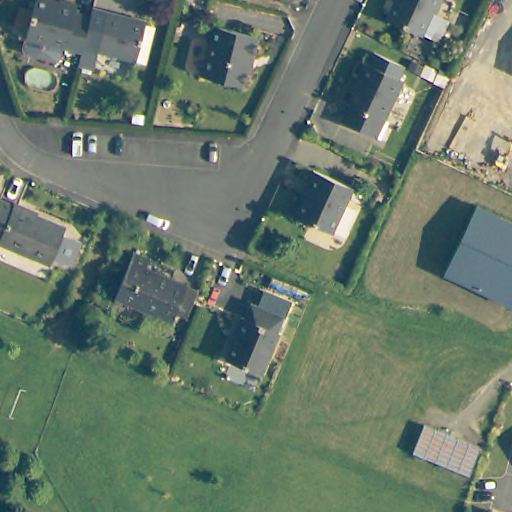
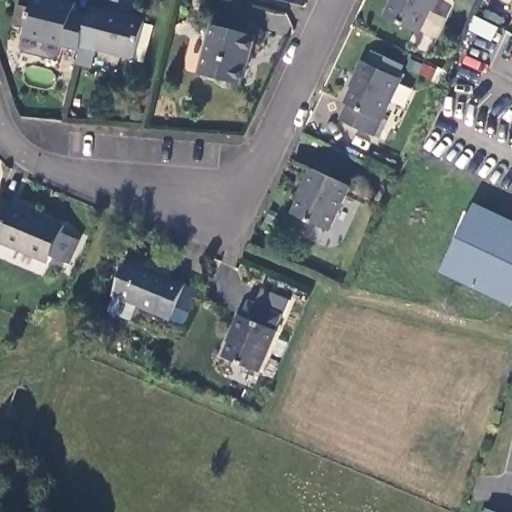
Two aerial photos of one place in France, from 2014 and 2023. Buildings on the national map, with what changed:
unchanged [(47,58),(18,51),(15,45),(18,35),(26,0),(44,0),(46,0),(47,0),(65,0),(64,6),(85,11),(82,25),(76,49),(55,44),(52,55),(47,58)]
unchanged [(439,0),(431,18),(428,16),(419,35),(380,18),(387,0),(438,0),(439,0)]
unchanged [(85,11),(86,7),(138,18),(130,58),(93,50),(88,67),(72,63),(76,49),(82,25),(85,11)]
unchanged [(246,55),(241,54),(232,83),(193,75),(205,26),(252,35),(246,55)]
unchanged [(367,141),(335,127),(342,113),(338,110),(348,86),(344,84),(354,64),(358,65),(363,53),(394,65),(389,78),(395,80),(367,141)]
unchanged [(326,229),(292,215),(302,189),(297,187),(306,166),(346,183),(326,229)]
unchanged [(20,202),(17,208),(50,222),(47,229),(66,236),(54,265),(0,243),(0,197),(1,194),(20,202)]
unchanged [(455,276),(487,207),(512,219),(512,302),(455,276)]
unchanged [(164,319),(109,298),(128,252),(145,258),(141,269),(179,284),(164,319)]
unchanged [(264,335),(247,373),(213,359),(222,335),(218,332),(226,316),(230,316),(236,304),(242,307),(249,292),(276,304),(269,319),(266,318),(260,332),(264,335)]
demolished [(459,473),(402,452),(413,424),(470,445),(459,473)]
unchanged [(507,512),(482,512),(484,505),(507,512)]

